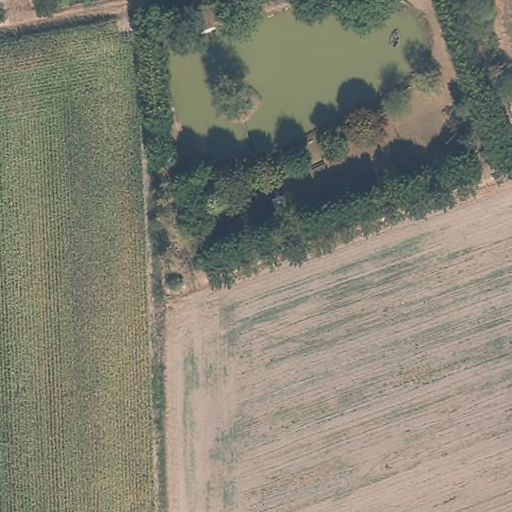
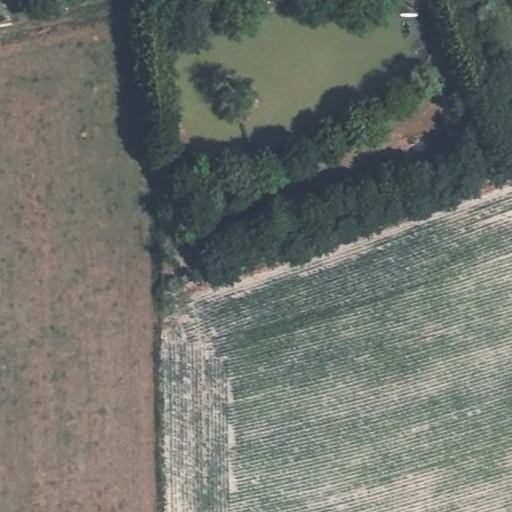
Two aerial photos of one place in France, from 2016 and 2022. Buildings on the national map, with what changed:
[]

